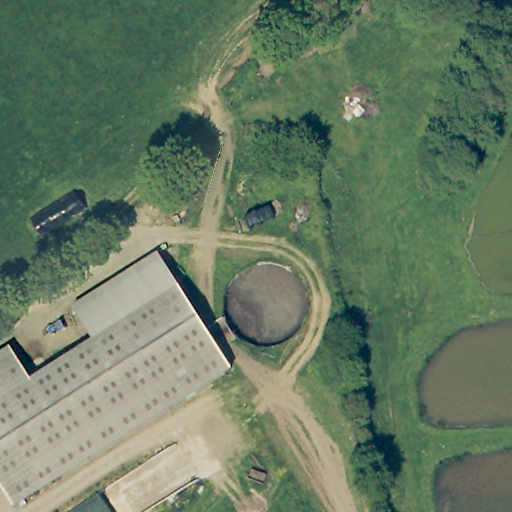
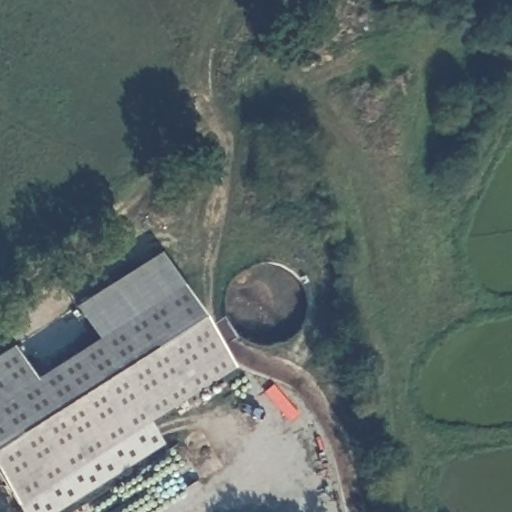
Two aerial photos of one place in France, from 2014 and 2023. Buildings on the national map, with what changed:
unchanged [(98,343),(77,310),(162,255),(183,288),(98,343)]
unchanged [(235,368),(21,506),(0,474),(0,356),(15,347),(38,382),(98,343),(183,288),(235,368)]
new [(162,445),(55,512),(25,512),(21,506),(143,427),(149,424),(162,445)]

